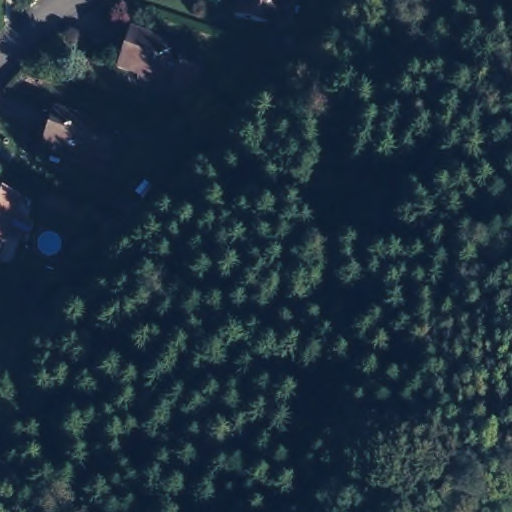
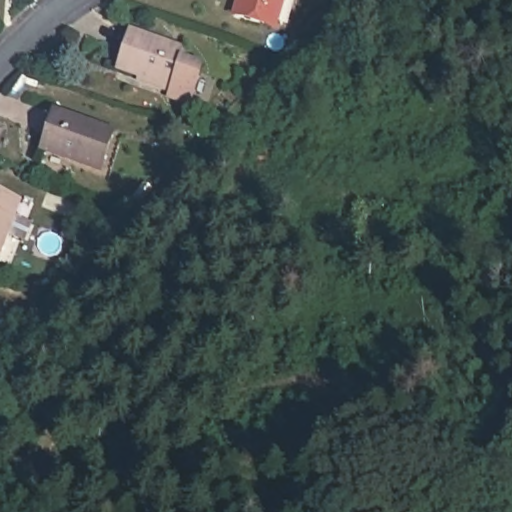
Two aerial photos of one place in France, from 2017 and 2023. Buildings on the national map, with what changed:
unchanged [(224,18),(229,0),(272,0),(264,30),(224,18)]
unchanged [(174,53),(170,65),(189,70),(178,101),(157,96),(158,87),(107,75),(118,36),(174,53)]
unchanged [(105,140),(92,175),(38,157),(50,121),(105,140)]
unchanged [(0,225),(0,202),(8,205),(0,225)]

